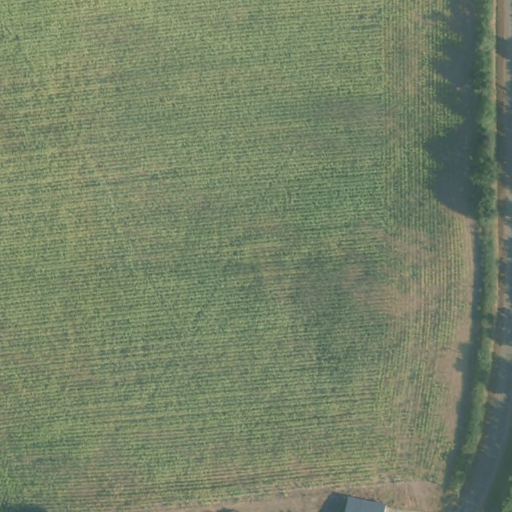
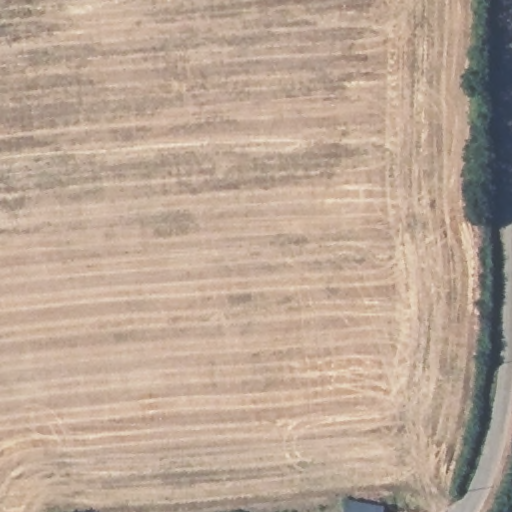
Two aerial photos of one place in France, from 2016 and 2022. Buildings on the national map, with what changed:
unchanged [(388,512),(345,512),(348,500),(390,503),(388,512)]

